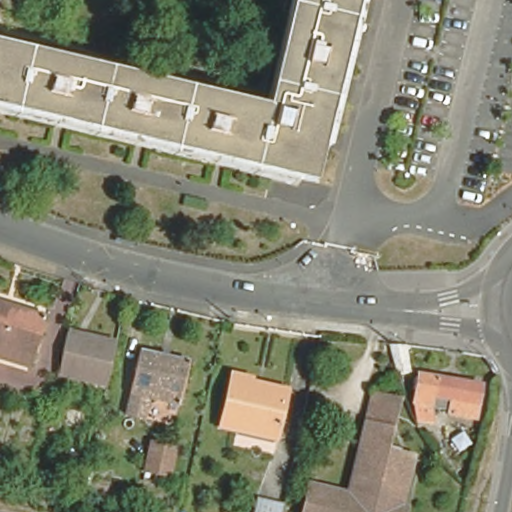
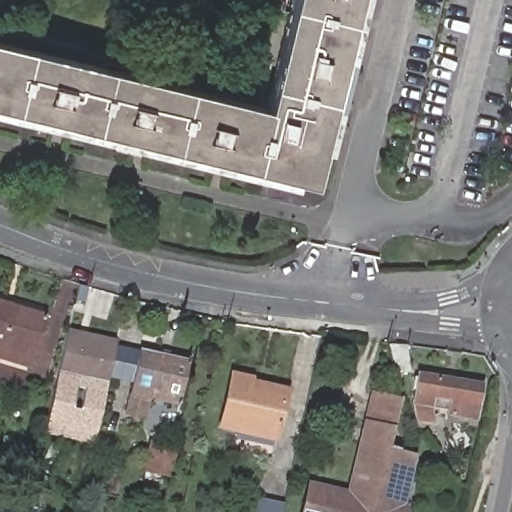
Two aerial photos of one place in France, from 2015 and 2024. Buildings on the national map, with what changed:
unchanged [(0,106),(0,35),(269,101),(293,0),(354,0),(321,142),(312,174),(295,170),(293,179),(244,167),(0,106)]
unchanged [(321,142),(354,0),(364,0),(330,144),(321,142)]
unchanged [(46,317),(32,365),(0,356),(0,304),(46,317)]
unchanged [(53,375),(63,333),(65,333),(113,345),(104,386),(56,375),(53,375)]
unchanged [(402,345),(409,365),(394,369),(386,347),(402,345)]
unchanged [(187,357),(177,401),(175,401),(173,407),(148,401),(144,418),(141,418),(140,422),(125,419),(126,414),(124,413),(139,347),(187,357)]
unchanged [(256,371),(254,381),(287,388),(277,430),(224,417),(236,367),(256,371)]
unchanged [(481,385),(474,421),(446,416),(449,401),(431,397),(428,405),(413,402),(420,372),(481,385)]
new [(56,375),(104,386),(94,445),(44,434),(56,375)]
unchanged [(310,484),(348,492),(365,422),(371,393),(398,400),(392,428),(388,444),(396,446),(401,447),(400,453),(412,457),(400,512),(304,512),(310,484)]
unchanged [(428,406),(437,422),(423,429),(415,412),(428,406)]
unchanged [(147,475),(149,467),(147,467),(155,438),(179,445),(172,472),(170,472),(169,481),(147,475)]
unchanged [(256,495),(282,501),(279,512),(252,512),(256,495)]

